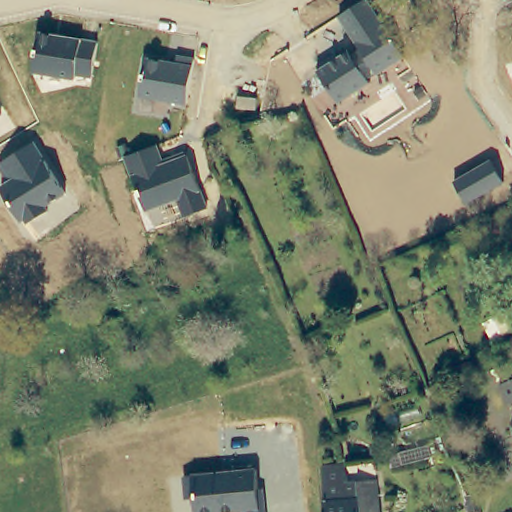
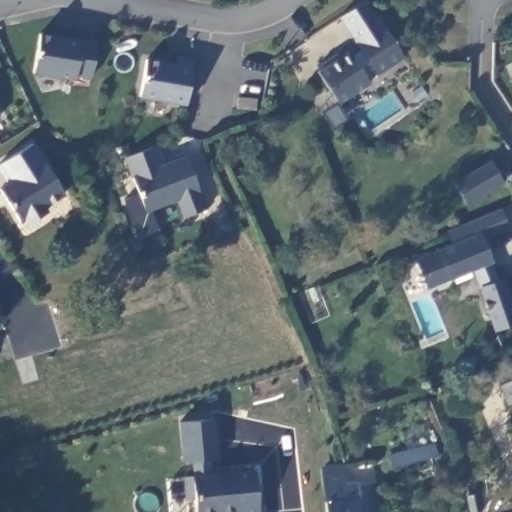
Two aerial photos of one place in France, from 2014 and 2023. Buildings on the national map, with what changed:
unchanged [(366,0),(368,0),(406,57),(369,80),(371,84),(340,104),(317,70),(349,50),(353,55),(360,50),(339,17),(366,0)]
unchanged [(93,79),(76,77),(76,80),(32,73),(40,33),(82,40),(99,43),(93,79)]
unchanged [(187,105),(138,96),(146,57),(176,62),(178,56),(195,58),(187,105)]
unchanged [(3,115),(0,117),(0,111),(3,115)]
unchanged [(46,159),(44,161),(66,195),(46,207),(48,212),(28,223),(25,220),(21,223),(0,189),(10,181),(0,166),(36,142),(46,159)]
unchanged [(163,160),(186,152),(208,209),(185,218),(177,200),(146,212),(126,158),(158,146),(163,160)]
unchanged [(504,183),(468,205),(454,182),(491,161),(504,183)]
new [(444,231),(502,208),(510,229),(482,239),(491,263),(498,280),(502,279),(512,311),(512,327),(495,332),(480,287),(473,270),(426,288),(414,258),(450,244),(444,231)]
new [(184,460),(181,421),(219,418),(222,458),(184,460)]
unchanged [(308,467),(342,461),(348,475),(368,475),(370,486),(373,512),(317,512),(308,470),(308,467)]
unchanged [(257,489),(264,489),(266,512),(195,512),(193,500),(187,500),(184,476),(256,470),(257,489)]
demolished [(512,512),(497,512),(512,507),(512,512)]

